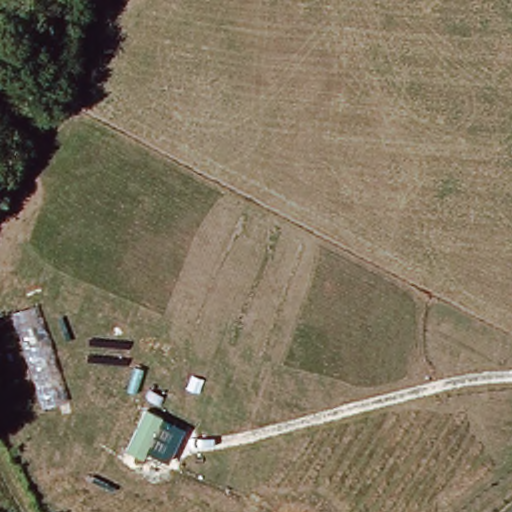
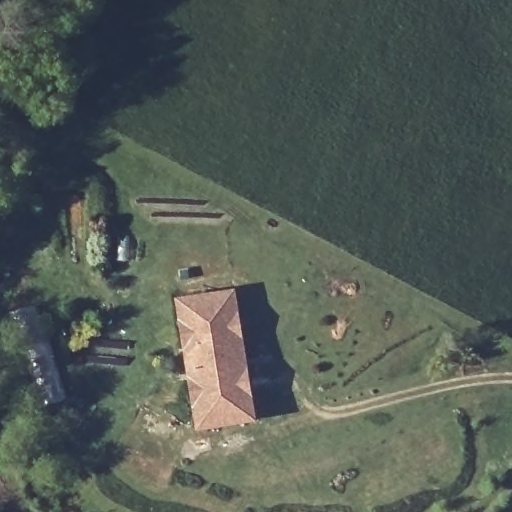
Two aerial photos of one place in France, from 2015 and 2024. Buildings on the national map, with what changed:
new [(175,298),(237,290),(257,424),(196,434),(175,298)]
unchanged [(185,429),(169,463),(147,452),(144,460),(125,451),(145,409),(185,429)]

